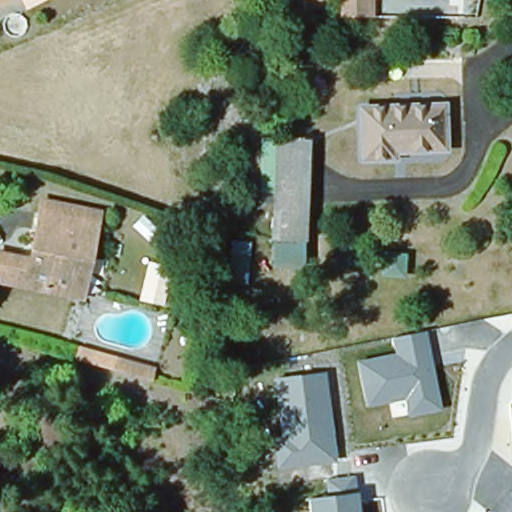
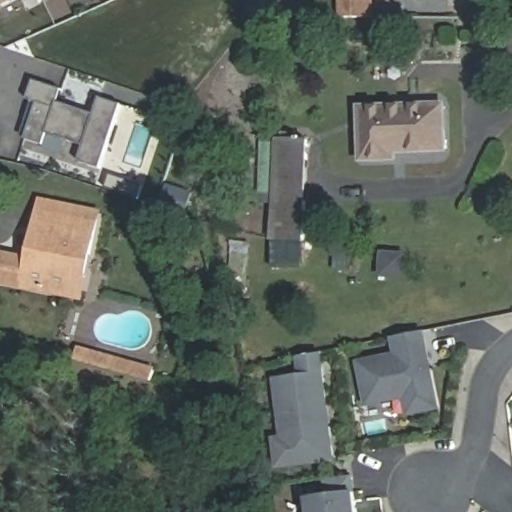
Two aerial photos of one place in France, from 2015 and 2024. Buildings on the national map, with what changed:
unchanged [(0,2),(0,0),(5,0),(0,2)]
unchanged [(0,2),(5,0),(21,0),(0,10),(0,2)]
unchanged [(339,22),(340,1),(338,1),(337,1),(338,0),(378,0),(377,1),(368,1),(367,22),(344,22),(339,22)]
new [(100,99),(121,106),(100,167),(80,160),(85,146),(47,134),(43,145),(26,139),(39,104),(28,100),(35,81),(63,90),(58,104),(95,116),(100,99)]
unchanged [(442,109),(443,153),(394,154),(394,161),(361,162),(361,111),(442,109)]
new [(0,136),(0,128),(2,129),(0,136)]
unchanged [(270,241),(277,143),(308,145),(303,244),(270,241)]
unchanged [(0,273),(3,259),(24,263),(35,265),(42,232),(45,217),(101,230),(96,253),(86,302),(77,300),(0,283),(0,273)]
unchanged [(440,409),(407,416),(404,401),(366,409),(356,362),(393,354),(390,337),(426,330),(440,409)]
unchanged [(149,385),(100,371),(93,369),(73,364),(77,351),(97,356),(153,372),(149,385)]
unchanged [(337,464),(274,472),(270,438),(281,436),(273,379),(326,372),(337,464)]
unchanged [(360,512),(311,512),(309,497),(326,495),(325,480),(356,477),(360,512)]

